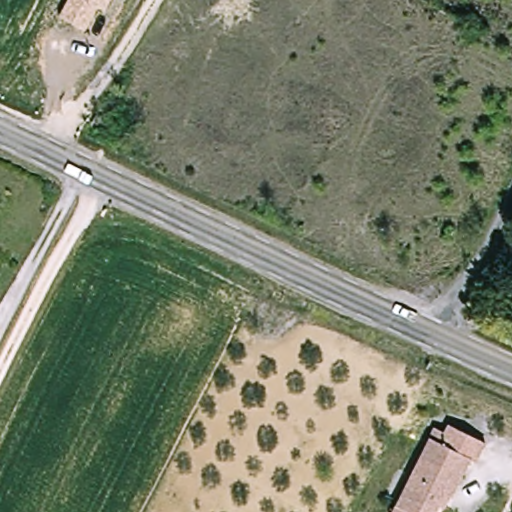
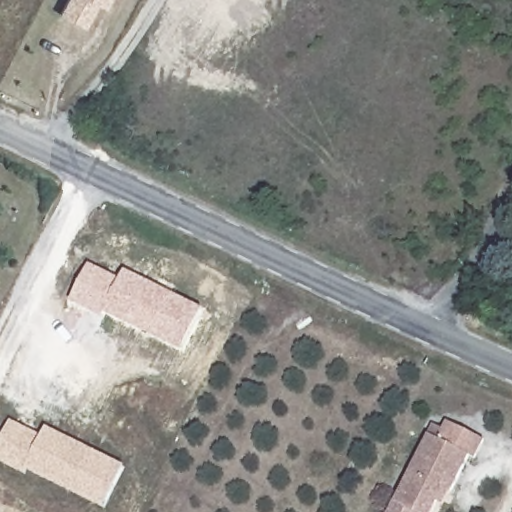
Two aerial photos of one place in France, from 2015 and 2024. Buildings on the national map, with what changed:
unchanged [(98,6),(85,28),(59,13),(66,0),(110,0),(105,9),(98,6)]
new [(106,314),(103,319),(70,303),(90,262),(120,277),(125,269),(204,309),(183,352),(106,314)]
new [(28,476),(0,463),(0,440),(11,419),(42,434),(46,426),(126,466),(104,508),(30,470),(28,476)]
unchanged [(399,503),(438,431),(446,436),(453,423),(491,443),(480,464),(474,460),(454,496),(446,491),(435,512),(394,512),(399,503)]

